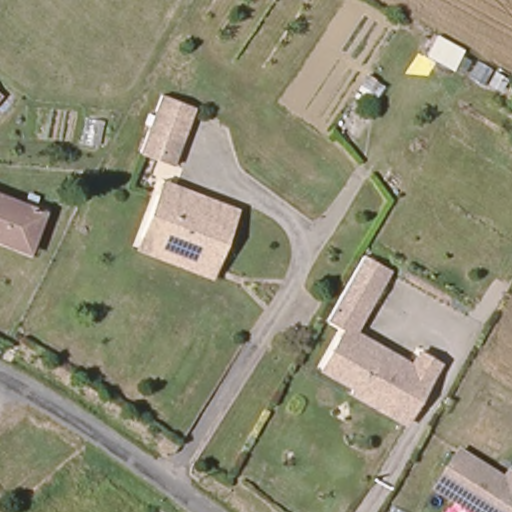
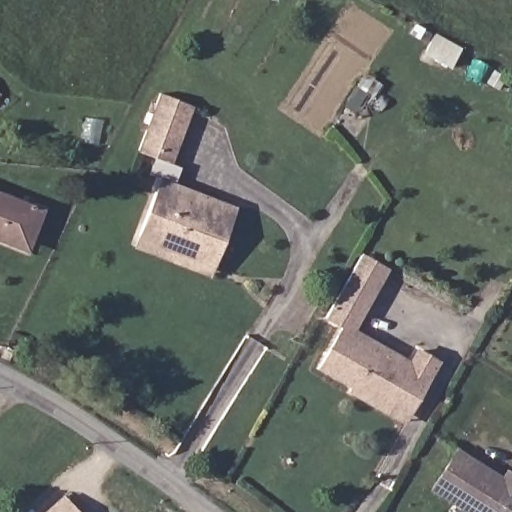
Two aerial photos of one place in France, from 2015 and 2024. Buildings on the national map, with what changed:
unchanged [(449,65),(424,50),(434,34),(459,49),(449,65)]
unchanged [(172,164),(140,152),(161,95),(194,106),(172,164)]
unchanged [(215,268),(139,237),(156,196),(161,182),(176,188),(236,212),(215,268)]
unchanged [(0,240),(0,194),(43,212),(30,245),(28,251),(1,240),(0,240)]
unchanged [(211,280),(135,249),(139,237),(215,268),(211,280)]
unchanged [(354,383),(320,362),(342,322),(327,312),(363,250),(388,266),(363,308),(368,310),(358,329),(412,361),(420,347),(441,361),(413,406),(406,420),(351,387),(354,383)]
unchanged [(426,490),(456,446),(499,476),(508,467),(512,471),(512,512),(462,512),(426,490)]
new [(63,495),(79,512),(43,512),(63,495)]

